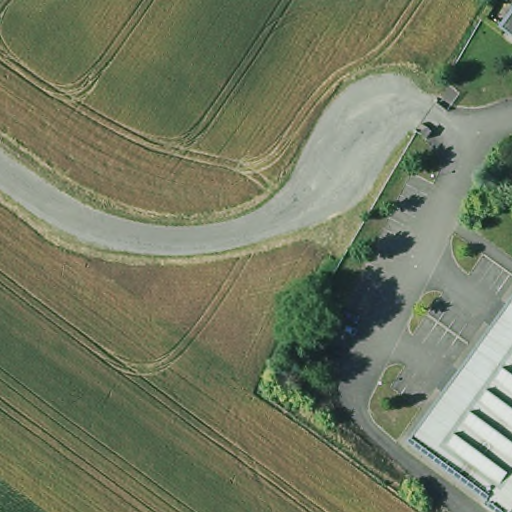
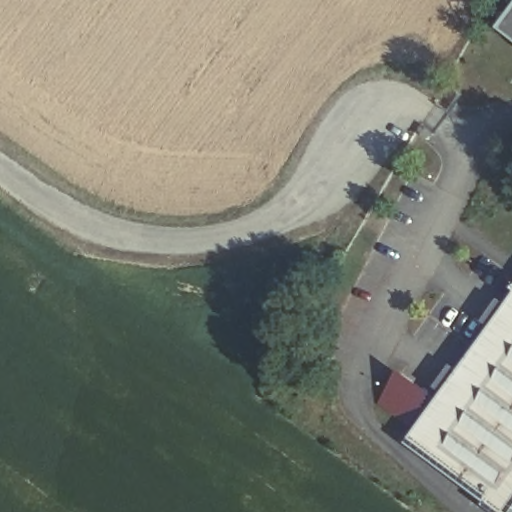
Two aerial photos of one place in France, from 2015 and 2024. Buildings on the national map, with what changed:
unchanged [(488,502),(410,443),(512,302),(512,512),(496,512),(486,504),(488,502)]

